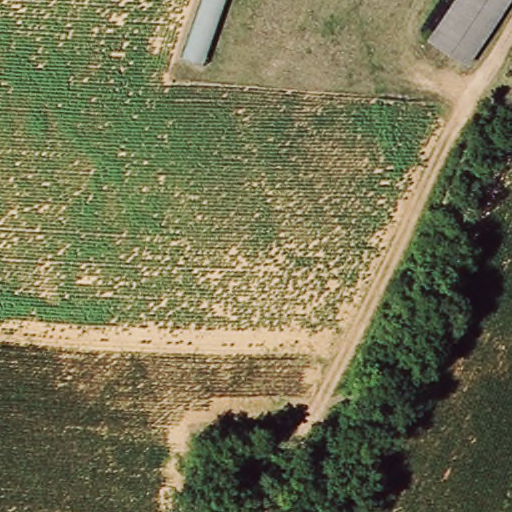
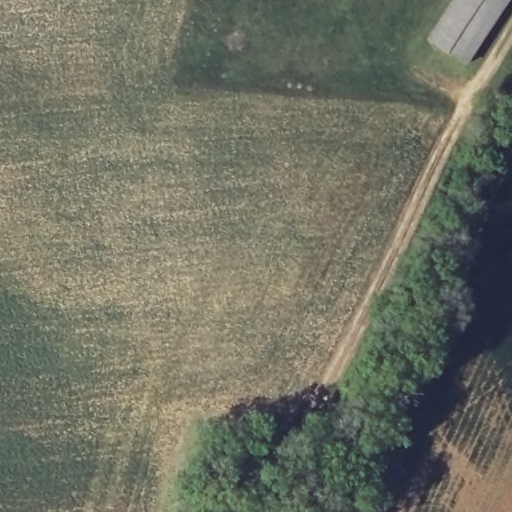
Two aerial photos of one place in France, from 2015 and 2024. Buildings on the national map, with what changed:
demolished [(179,58),(199,0),(231,0),(208,69),(179,58)]
unchanged [(467,62),(433,39),(461,0),(511,0),(484,39),(467,62)]

